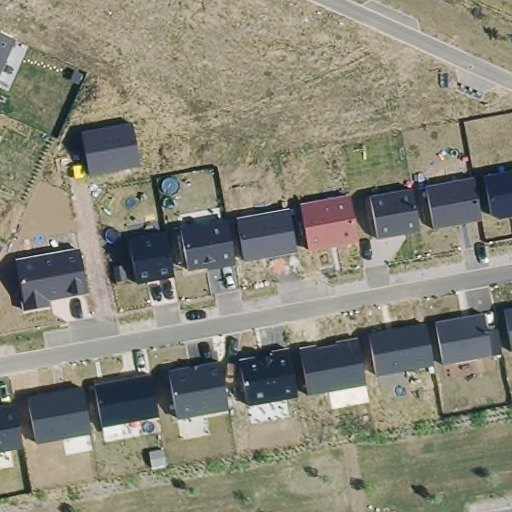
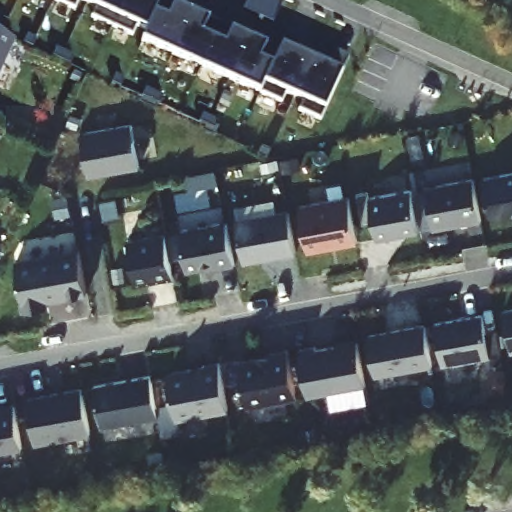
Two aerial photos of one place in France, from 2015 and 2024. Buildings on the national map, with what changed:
new [(58,0),(80,0),(76,7),(58,0)]
new [(301,109),(306,100),(288,90),(283,101),(144,38),(148,28),(139,23),(134,33),(93,16),(99,5),(87,0),(173,0),(280,49),(289,28),(304,35),(297,49),(327,63),(335,49),(349,55),(322,118),(301,109)]
unchanged [(15,39),(0,75),(0,33),(15,39)]
unchanged [(132,122),(141,166),(90,176),(82,131),(132,122)]
unchanged [(490,214),(485,178),(512,173),(512,217),(498,219),(490,214)]
unchanged [(428,186),(473,177),(482,221),(435,230),(428,186)]
unchanged [(370,197),(411,189),(420,232),(379,240),(370,197)]
unchanged [(301,204),(350,195),(359,241),(310,252),(301,204)]
unchanged [(237,218),(290,209),(298,252),(245,264),(237,218)]
unchanged [(180,229),(227,221),(237,264),(209,271),(207,267),(189,272),(180,229)]
unchanged [(128,243),(166,235),(175,277),(137,285),(128,243)]
unchanged [(79,248),(88,290),(49,299),(51,306),(24,311),(13,260),(79,248)]
unchanged [(505,309),(512,308),(512,352),(505,309)]
unchanged [(437,322),(484,313),(487,333),(497,331),(501,353),(492,356),(445,364),(437,322)]
unchanged [(368,335),(426,324),(433,365),(377,376),(368,335)]
unchanged [(299,347),(318,343),(318,348),(336,345),(335,340),(358,337),(367,385),(309,396),(299,347)]
unchanged [(239,360),(256,356),(256,359),(272,356),(272,351),(289,348),(299,397),(250,406),(239,360)]
unchanged [(169,371),(219,361),(229,411),(178,420),(169,371)]
unchanged [(95,385),(151,375),(159,417),(103,427),(95,385)]
unchanged [(83,387),(92,433),(37,443),(28,398),(83,387)]
unchanged [(14,404),(24,449),(0,454),(0,407),(14,404)]

